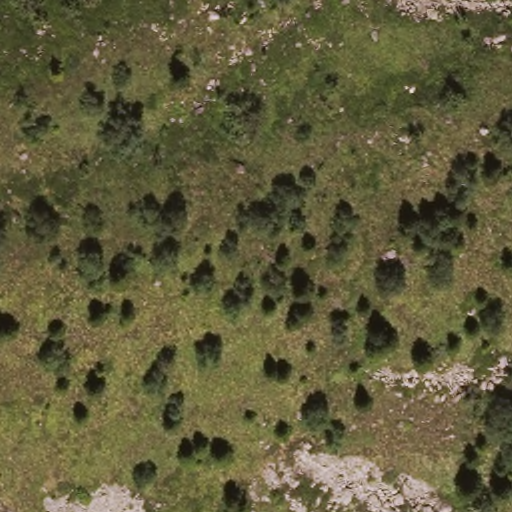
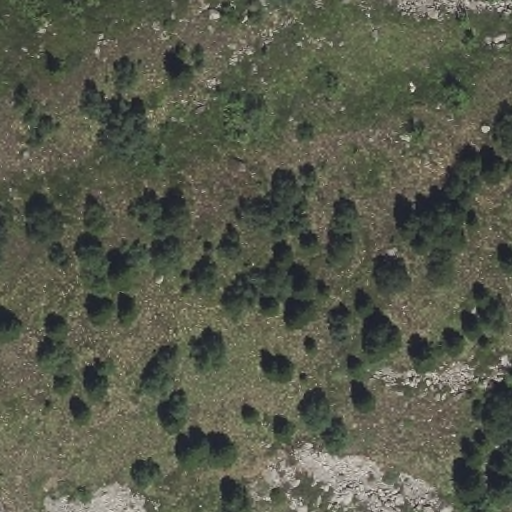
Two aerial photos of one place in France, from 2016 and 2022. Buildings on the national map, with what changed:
[]

